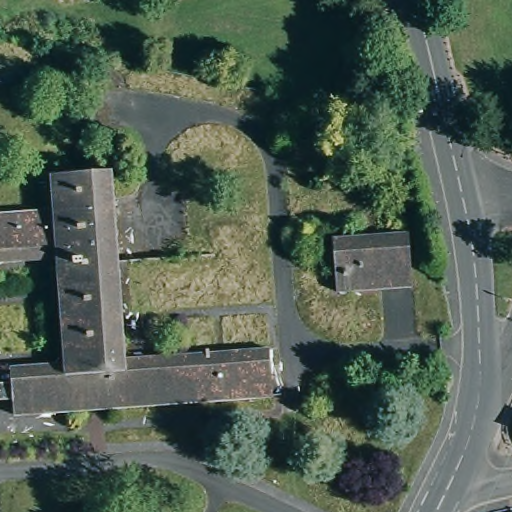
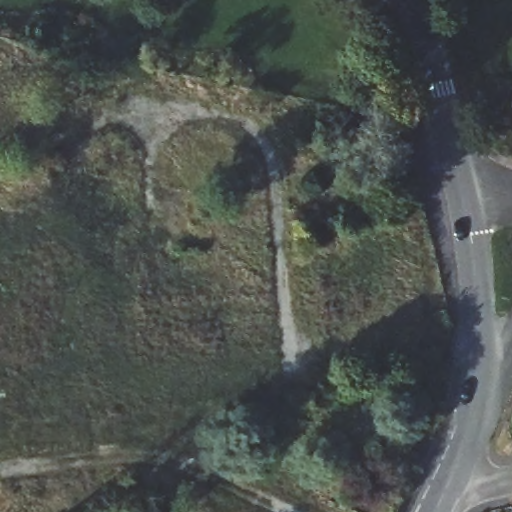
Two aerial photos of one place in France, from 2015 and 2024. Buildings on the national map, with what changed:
demolished [(50,256),(47,207),(45,172),(104,167),(118,357),(119,368),(59,372),(58,362),(50,256)]
demolished [(0,211),(47,207),(50,256),(0,260),(0,211)]
demolished [(323,237),(402,232),(405,286),(327,291),(323,237)]
demolished [(5,388),(3,365),(58,362),(59,372),(119,368),(118,357),(261,347),(266,395),(6,413),(5,398),(5,388)]

